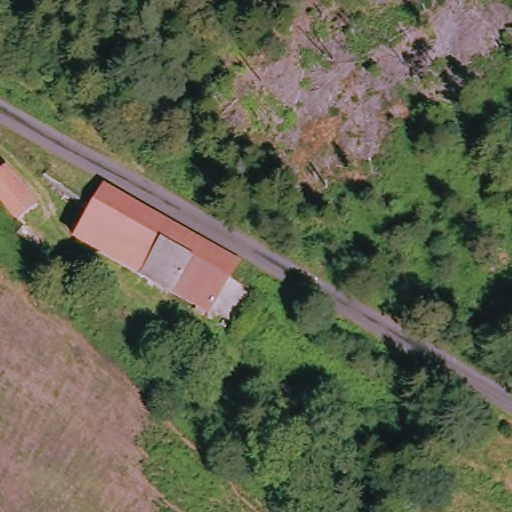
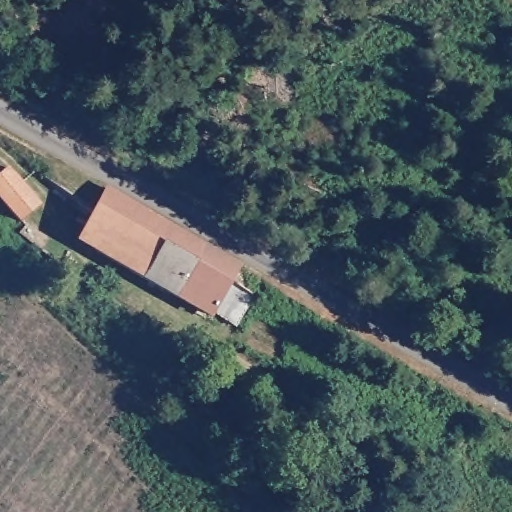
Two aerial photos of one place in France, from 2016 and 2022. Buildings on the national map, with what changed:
unchanged [(0,171),(4,167),(40,205),(22,221),(0,197),(0,171)]
unchanged [(231,313),(220,307),(214,312),(193,300),(83,235),(86,229),(71,220),(83,198),(98,209),(110,187),(178,226),(222,251),(243,263),(232,283),(222,301),(234,309),(231,313)]

